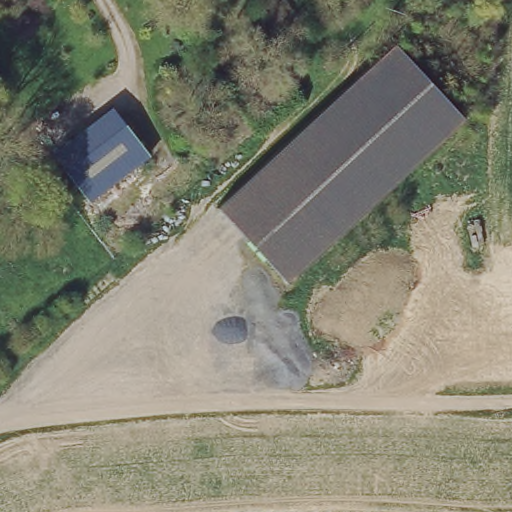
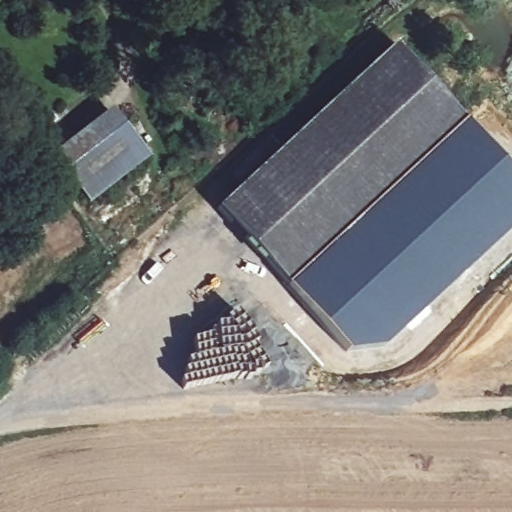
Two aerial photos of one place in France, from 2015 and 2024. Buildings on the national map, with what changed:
unchanged [(216,212),(396,43),(465,120),(286,288),(216,212)]
unchanged [(53,152),(116,108),(152,158),(91,204),(53,152)]
new [(512,169),(512,230),(386,347),(347,351),(286,288),(465,120),(512,169)]

